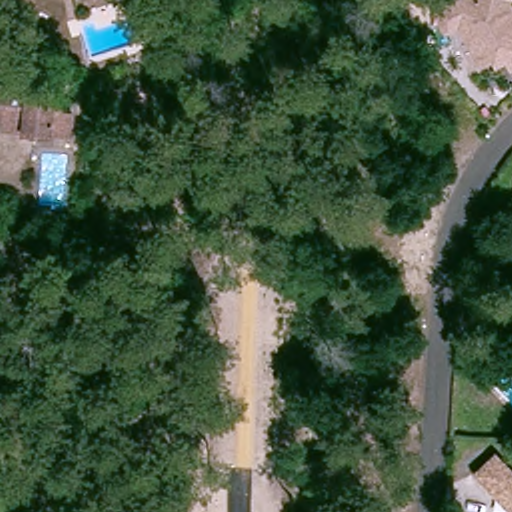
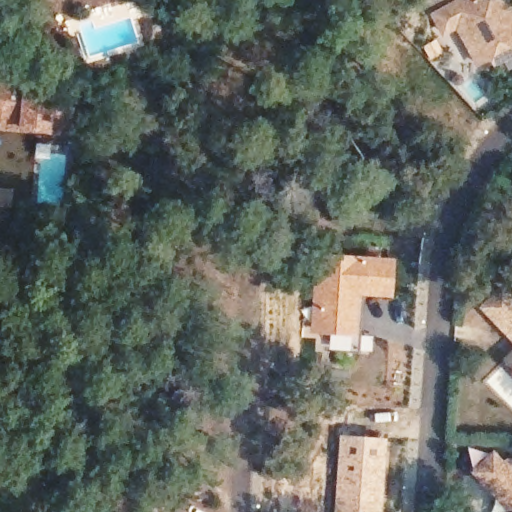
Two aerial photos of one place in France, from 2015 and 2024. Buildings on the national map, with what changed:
unchanged [(451,21),(438,28),(428,11),(441,4),(448,0),(500,0),(512,20),(512,57),(506,60),(501,52),(492,57),(488,51),(473,59),(451,21)]
unchanged [(79,137),(12,131),(13,124),(13,121),(0,120),(0,90),(36,92),(36,85),(70,87),(69,95),(67,115),(80,116),(79,137)]
new [(314,254),(367,256),(395,258),(393,296),(363,294),(358,293),(355,333),(310,332),(314,254)]
unchanged [(499,313),(512,327),(512,367),(478,332),(499,313)]
new [(326,335),(372,335),(371,351),(326,350),(326,335)]
unchanged [(512,375),(512,394),(502,384),(512,375)]
new [(386,438),(382,512),(333,512),(337,434),(386,438)]
unchanged [(494,453),(512,473),(512,512),(511,512),(474,473),(494,453)]

